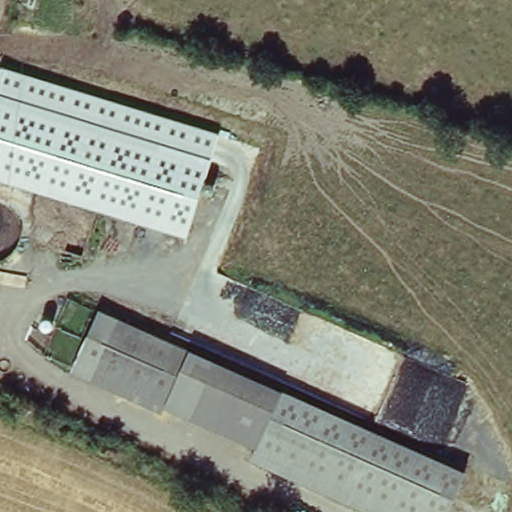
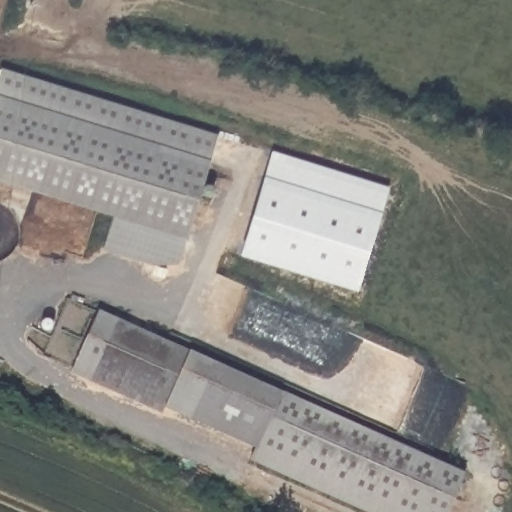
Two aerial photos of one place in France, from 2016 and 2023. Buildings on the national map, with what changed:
unchanged [(220,134),(187,238),(181,260),(152,263),(105,249),(116,217),(0,181),(0,73),(2,67),(220,134)]
new [(240,255),(272,151),(390,187),(358,291),(240,255)]
unchanged [(280,387),(248,448),(67,374),(97,300),(280,387)]
unchanged [(280,387),(466,472),(448,512),(362,512),(244,460),(248,448),(280,387)]

